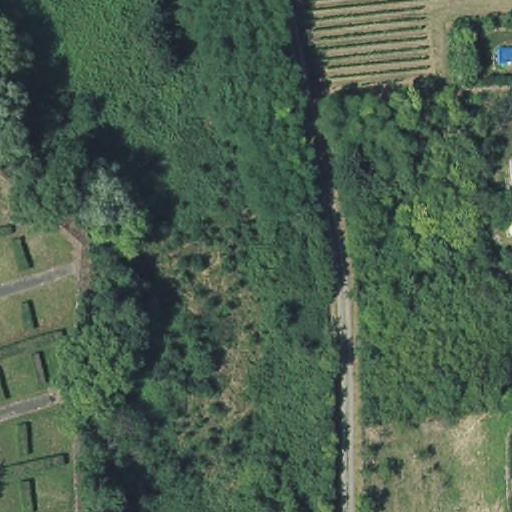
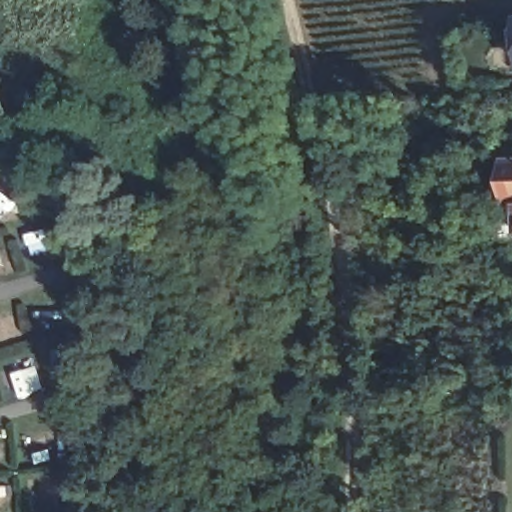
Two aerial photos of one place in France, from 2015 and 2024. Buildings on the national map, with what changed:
unchanged [(512,225),(511,205),(501,207),(500,191),(500,165),(512,165),(512,225)]

